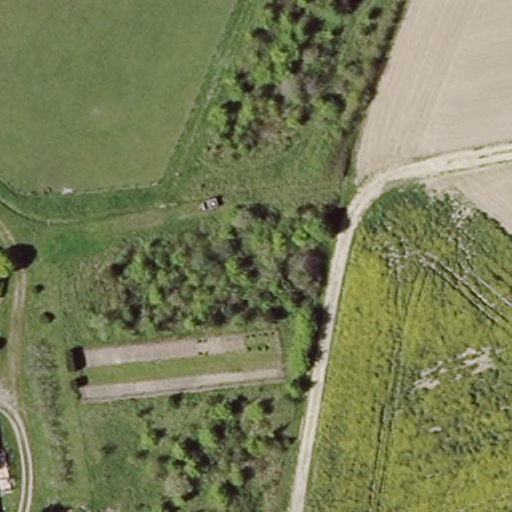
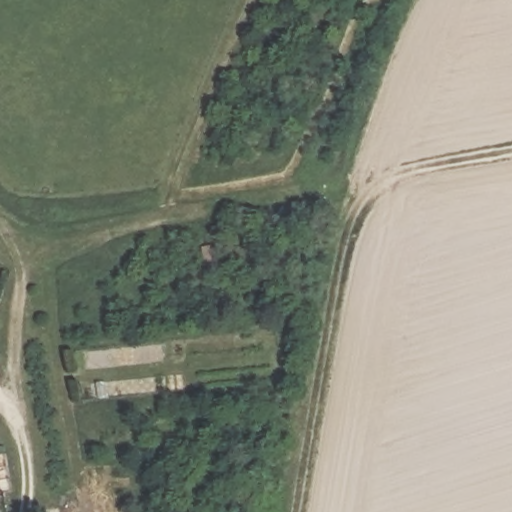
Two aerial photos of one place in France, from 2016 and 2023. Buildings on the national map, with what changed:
[]

